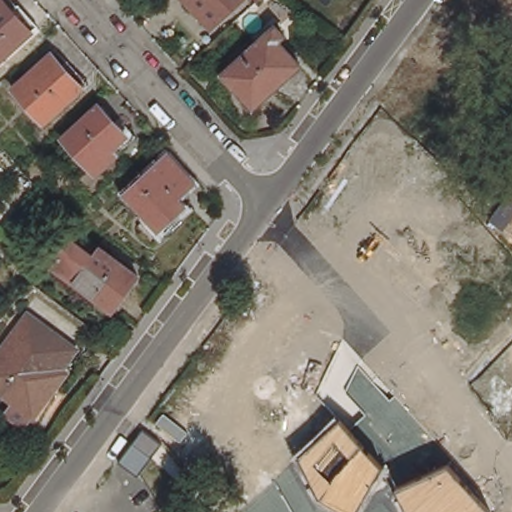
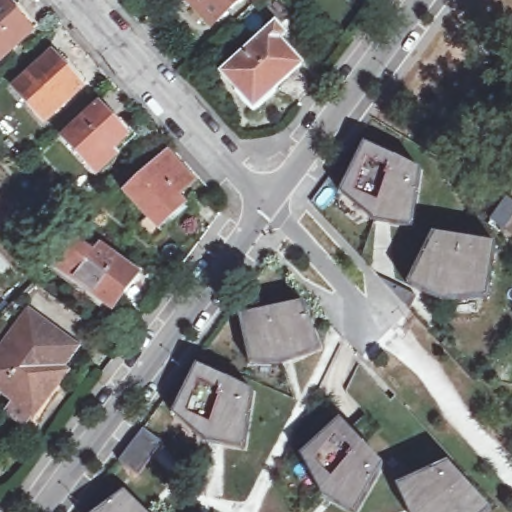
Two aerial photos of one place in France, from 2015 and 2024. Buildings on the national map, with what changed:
unchanged [(2,0),(12,9),(19,3),(39,25),(31,32),(0,60),(0,0),(2,0)]
unchanged [(199,1),(192,6),(187,0),(240,0),(217,21),(199,1)]
unchanged [(254,110),(235,91),(238,88),(223,73),(267,29),(302,64),(254,110)]
unchanged [(17,87),(53,55),(64,67),(71,61),(88,80),(82,86),(45,118),(17,87)]
unchanged [(61,137),(95,107),(108,121),(115,115),(137,137),(113,158),(110,154),(92,170),(61,137)]
new [(365,145),(420,172),(412,227),(374,222),(341,193),(365,145)]
unchanged [(158,215),(152,220),(127,192),(168,154),(195,182),(173,201),(180,209),(165,223),(158,215)]
new [(436,236),(493,246),(486,298),(445,301),(411,285),(436,236)]
unchanged [(54,263),(72,238),(95,255),(102,246),(140,274),(115,308),(54,263)]
unchanged [(35,283),(99,330),(68,370),(77,376),(35,431),(5,410),(15,397),(0,388),(0,315),(35,283)]
new [(305,303),(317,351),(285,363),(249,364),(240,317),(305,303)]
new [(227,380),(252,390),(243,448),(207,442),(172,412),(197,366),(227,380)]
unchanged [(337,412),(384,467),(359,512),(338,512),(315,502),(292,453),(337,412)]
new [(144,428),(163,443),(139,476),(120,461),(144,428)]
unchanged [(448,467),(490,511),(489,512),(407,512),(397,489),(448,467)]
new [(124,492),(145,512),(98,512),(124,492)]

